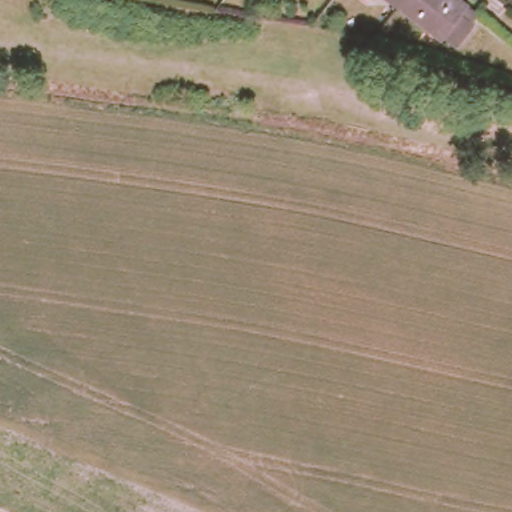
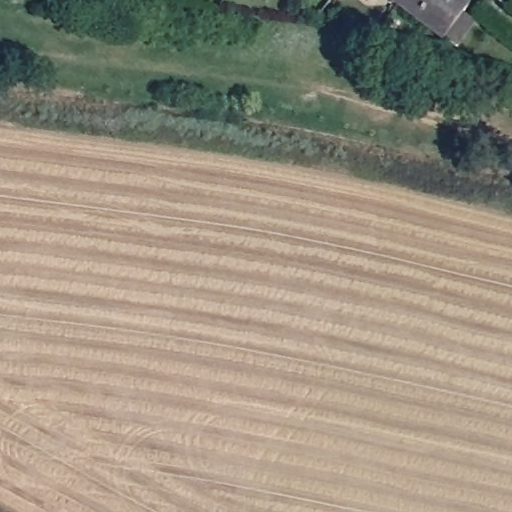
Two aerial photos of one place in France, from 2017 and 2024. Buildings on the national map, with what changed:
unchanged [(396,0),(404,0),(401,4),(396,0)]
unchanged [(401,4),(404,0),(464,0),(458,8),(470,17),(452,42),(440,33),(401,4)]

